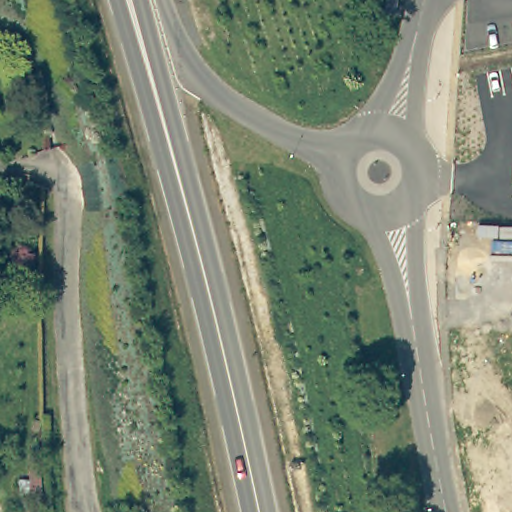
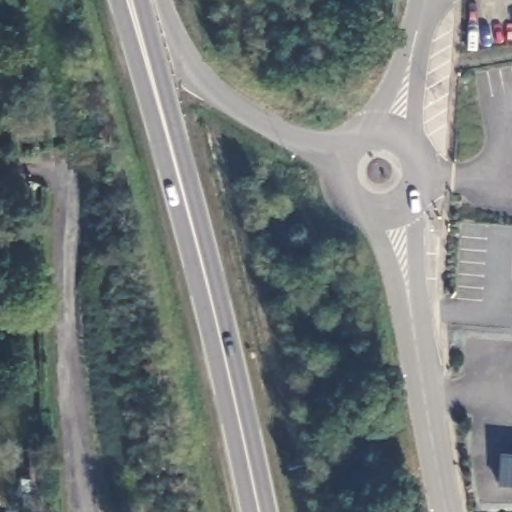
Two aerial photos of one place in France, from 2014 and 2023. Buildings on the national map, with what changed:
new [(498,484),(500,453),(512,454),(512,485),(498,484)]
unchanged [(29,479),(27,461),(39,461),(41,512),(23,512),(29,479)]

